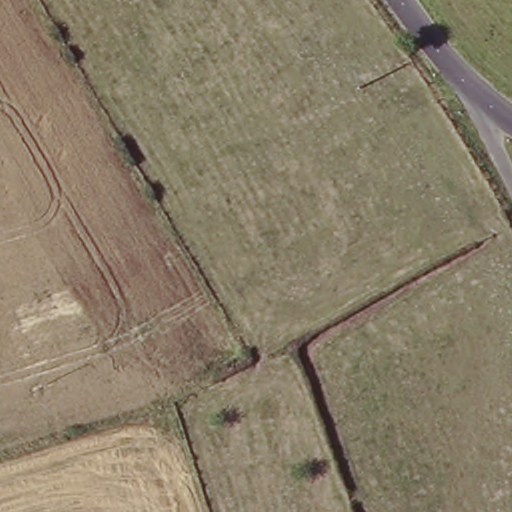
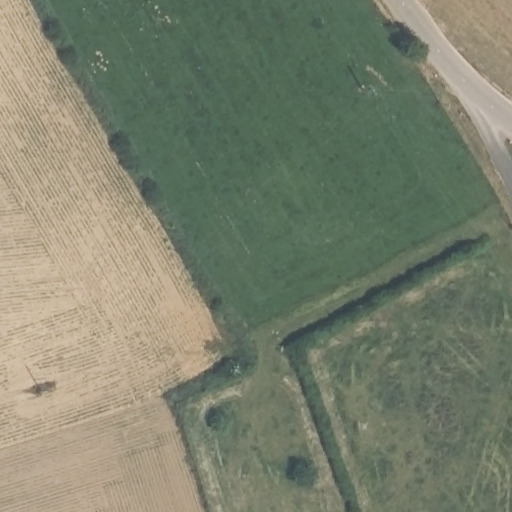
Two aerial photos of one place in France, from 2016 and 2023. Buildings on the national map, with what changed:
[]

